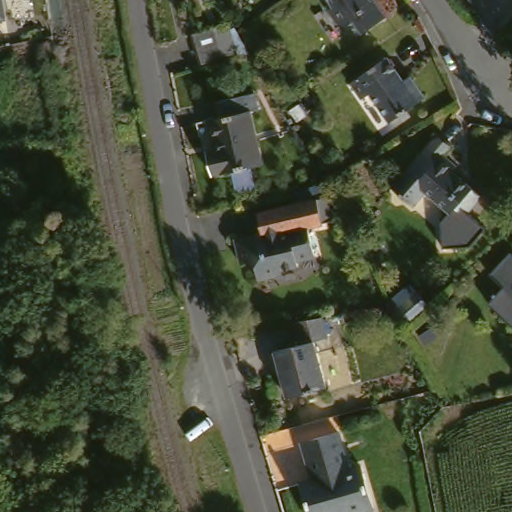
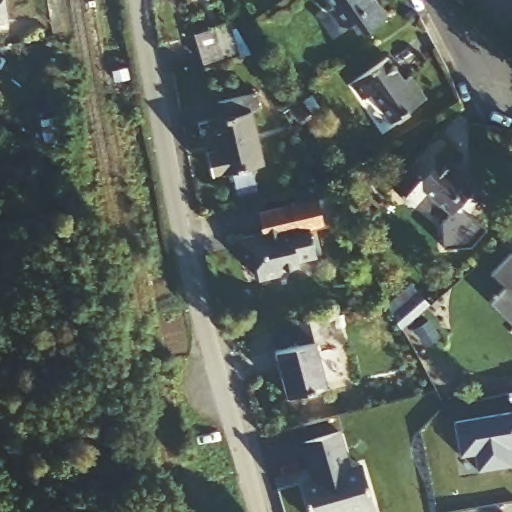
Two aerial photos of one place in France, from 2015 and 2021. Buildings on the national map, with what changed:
unchanged [(2,13),(0,13),(0,0),(1,0),(2,13)]
unchanged [(151,1),(151,0),(154,0),(151,1)]
unchanged [(370,2),(373,0),(379,0),(388,17),(365,30),(357,17),(349,21),(340,19),(331,3),(336,0),(370,0),(370,2)]
unchanged [(232,22),(242,52),(205,63),(196,34),(232,22)]
unchanged [(396,57),(410,82),(417,78),(431,103),(395,123),(378,94),(369,99),(357,78),(396,57)]
unchanged [(260,98),(262,114),(256,115),(266,169),(225,178),(225,176),(216,177),(211,156),(220,154),(215,123),(226,120),(224,106),(260,98)]
unchanged [(440,137),(460,153),(455,159),(462,166),(457,172),(486,196),(473,211),(490,227),(476,246),(449,246),(447,220),(452,214),(431,195),(421,207),(396,189),(440,137)]
unchanged [(330,225),(312,229),(320,258),(288,265),(292,274),(263,279),(254,244),(266,240),(260,213),(323,201),(330,225)]
unchanged [(508,283),(494,270),(512,253),(512,319),(492,299),(508,283)]
unchanged [(327,329),(330,340),(315,345),(327,379),(288,390),(273,347),(327,329)]
new [(511,471),(476,474),(475,455),(460,458),(455,423),(512,413),(512,455),(510,455),(511,471)]
unchanged [(364,512),(316,512),(306,483),(317,479),(307,443),(342,431),(355,468),(365,465),(377,501),(380,507),(364,512)]

